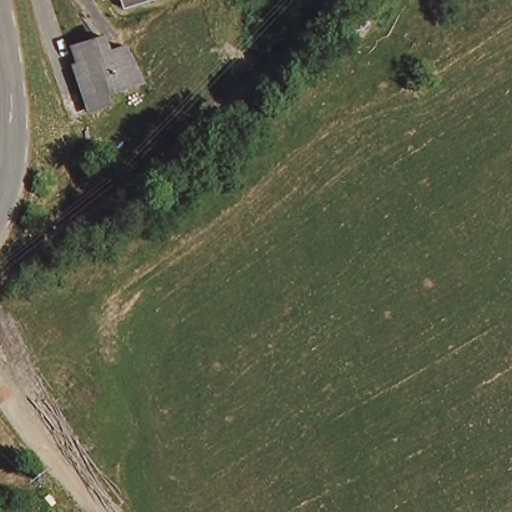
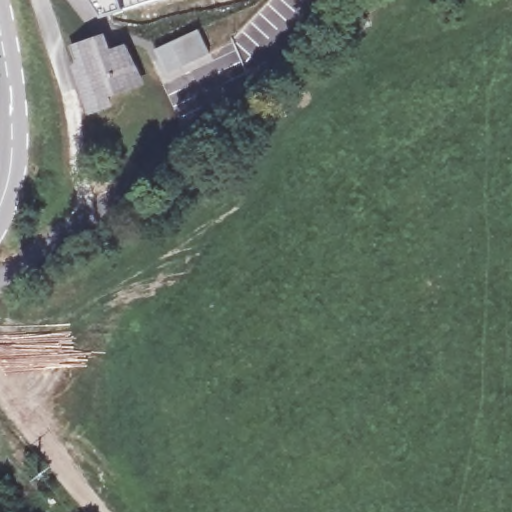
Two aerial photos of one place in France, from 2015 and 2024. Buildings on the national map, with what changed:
new [(167,74),(156,48),(199,30),(209,54),(167,74)]
unchanged [(94,38),(101,53),(116,46),(130,77),(98,92),(101,100),(85,106),(73,82),(79,80),(65,52),(94,38)]

